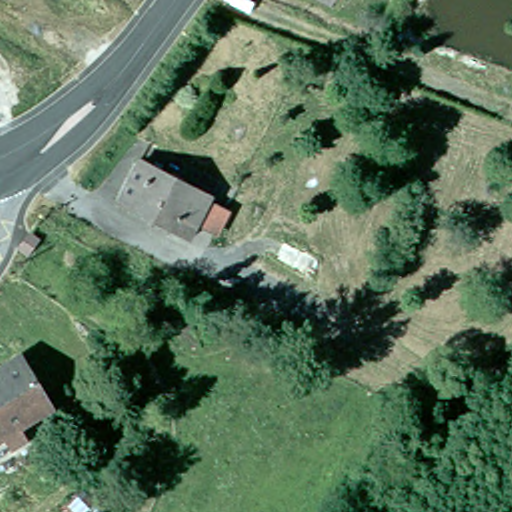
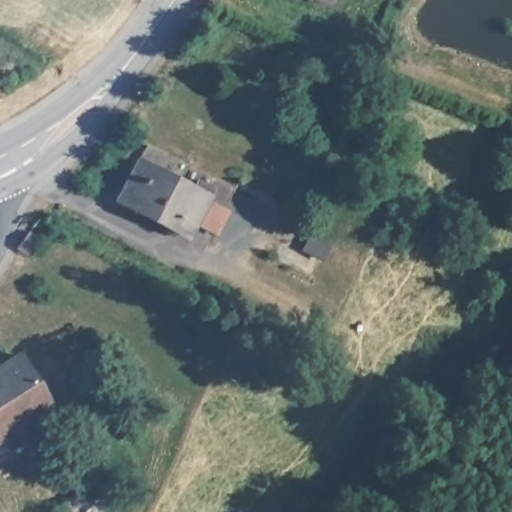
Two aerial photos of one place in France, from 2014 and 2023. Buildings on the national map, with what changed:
unchanged [(121,200),(141,156),(196,183),(199,175),(219,185),(195,235),(121,200)]
unchanged [(0,445),(0,375),(26,359),(57,409),(0,445)]

